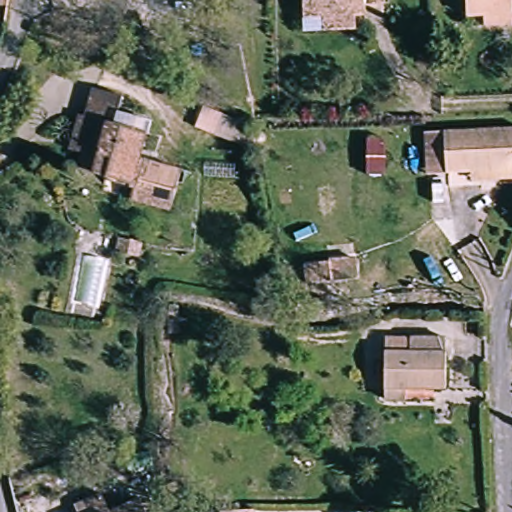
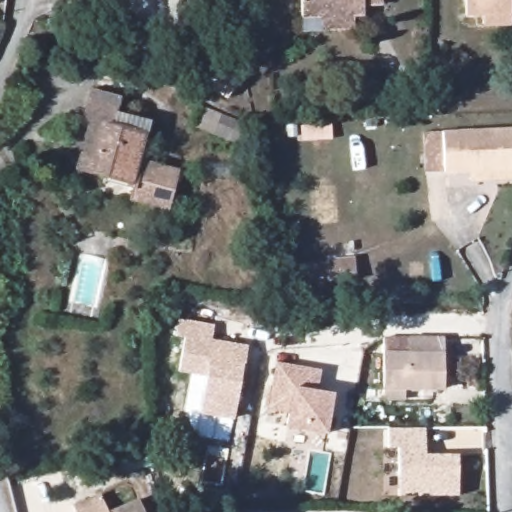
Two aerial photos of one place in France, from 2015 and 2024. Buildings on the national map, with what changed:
unchanged [(382,6),(360,8),(360,17),(299,19),(298,0),(382,0),(382,6)]
unchanged [(478,28),(478,15),(460,14),(460,0),(510,0),(508,14),(507,27),(478,28)]
unchanged [(142,38),(166,46),(163,68),(140,59),(142,38)]
unchanged [(74,166),(79,148),(70,142),(79,117),(89,88),(122,100),(113,130),(138,140),(132,160),(178,177),(166,215),(127,201),(131,188),(122,185),(102,177),(74,166)]
unchanged [(230,123),(265,137),(264,159),(221,141),(230,123)]
unchanged [(511,132),(512,153),(512,174),(435,176),(433,136),(511,132)]
unchanged [(360,285),(307,287),(305,263),(362,262),(360,285)]
new [(200,413),(207,376),(180,371),(185,339),(175,337),(180,319),(214,325),(212,339),(249,344),(234,420),(200,413)]
unchanged [(383,398),(383,385),(383,350),(407,350),(407,337),(441,337),(442,384),(409,384),(407,396),(383,398)]
new [(335,393),(327,435),(285,427),(287,413),(267,410),(277,362),(321,371),(317,391),(335,393)]
new [(458,455),(457,496),(397,495),(398,448),(388,448),(388,429),(425,429),(425,456),(458,455)]
unchanged [(102,495),(108,512),(77,512),(75,507),(102,495)]
unchanged [(145,512),(111,512),(141,501),(145,512)]

